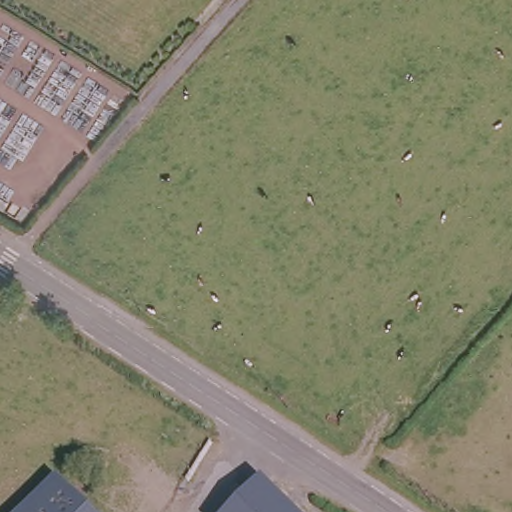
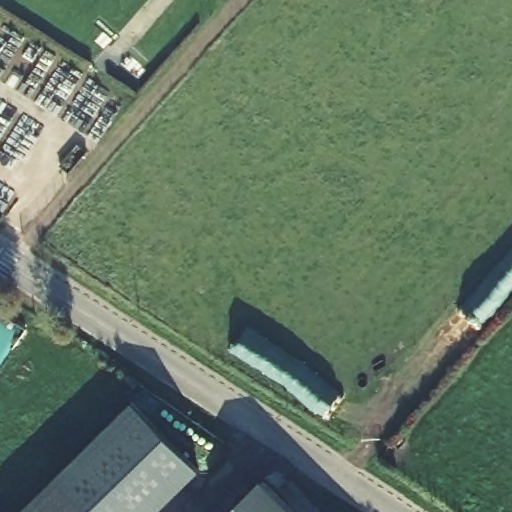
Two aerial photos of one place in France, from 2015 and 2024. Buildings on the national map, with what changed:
new [(198,469),(155,512),(21,512),(132,403),(198,469)]
new [(295,512),(231,512),(263,479),(295,512)]
demolished [(70,512),(39,512),(47,498),(70,512)]

